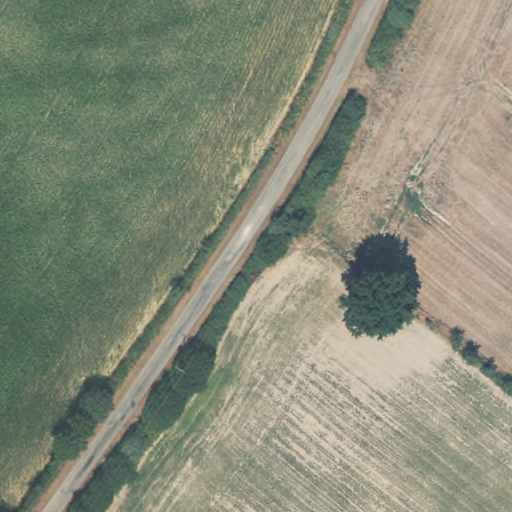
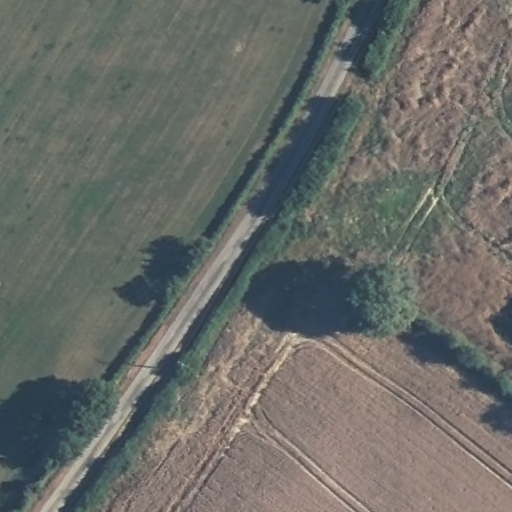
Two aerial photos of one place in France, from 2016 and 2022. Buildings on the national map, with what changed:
[]

